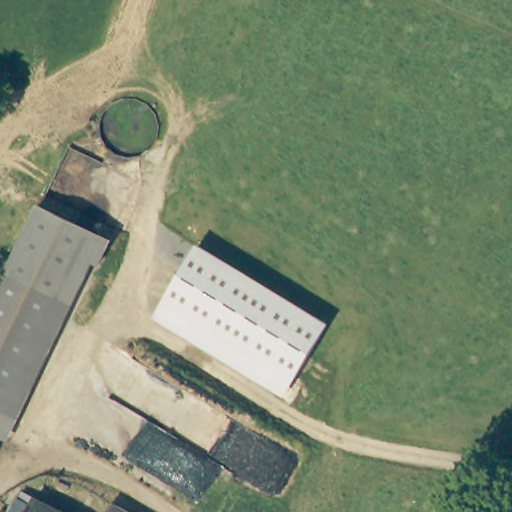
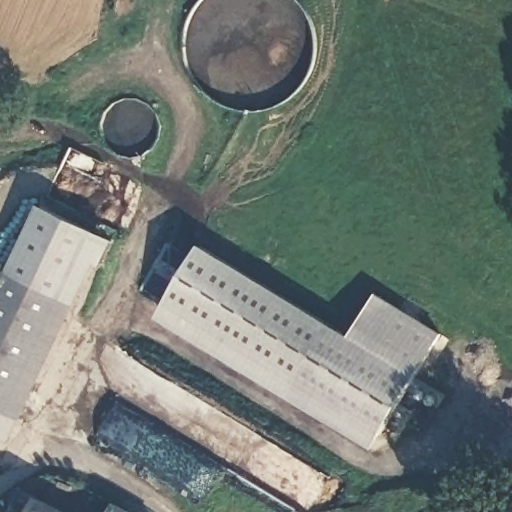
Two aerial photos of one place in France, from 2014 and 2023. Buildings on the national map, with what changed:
unchanged [(101,268),(93,265),(10,442),(0,439),(0,280),(37,204),(114,241),(101,268)]
unchanged [(286,397),(152,318),(196,242),(329,324),(286,397)]
new [(329,324),(349,336),(375,293),(441,332),(404,396),(372,450),(286,397),(329,324)]
new [(442,397),(437,406),(418,394),(423,385),(442,397)]
unchanged [(35,505),(37,500),(60,512),(13,512),(20,498),(35,505)]
unchanged [(123,512),(113,512),(116,508),(123,512)]

